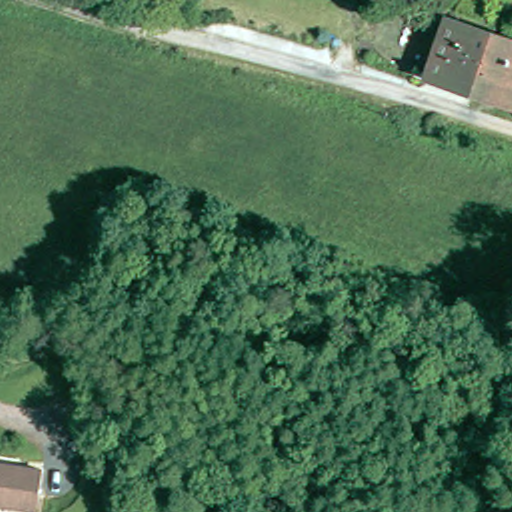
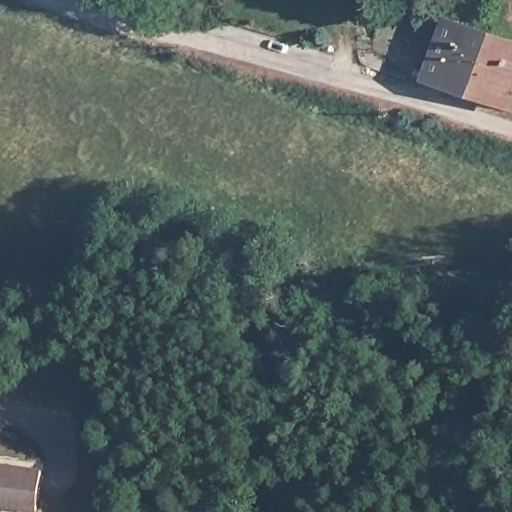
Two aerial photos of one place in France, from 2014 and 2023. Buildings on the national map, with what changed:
unchanged [(435,81),(438,66),(449,24),(496,38),(480,94),(475,103),(472,94),(435,81)]
unchanged [(512,42),(512,104),(480,94),(496,38),(512,42)]
unchanged [(42,512),(0,505),(0,464),(47,471),(42,512)]

